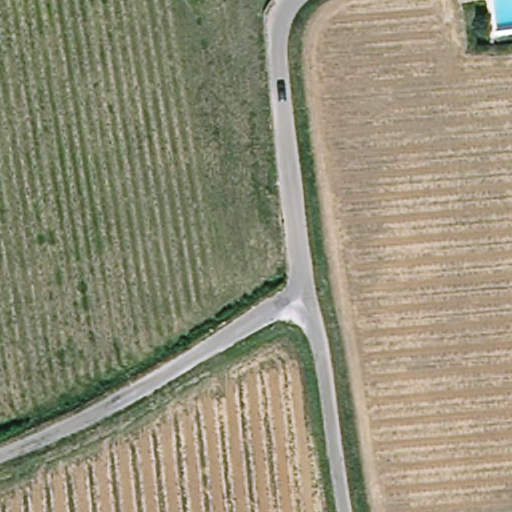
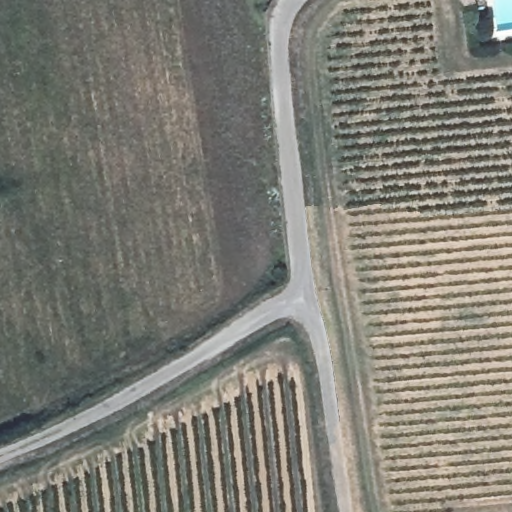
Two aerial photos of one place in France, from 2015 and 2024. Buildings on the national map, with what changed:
[]

